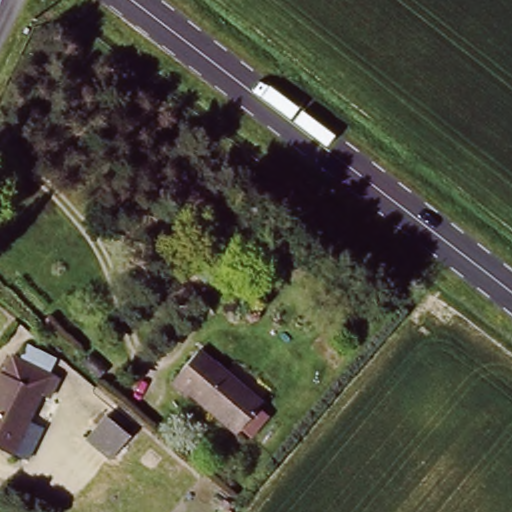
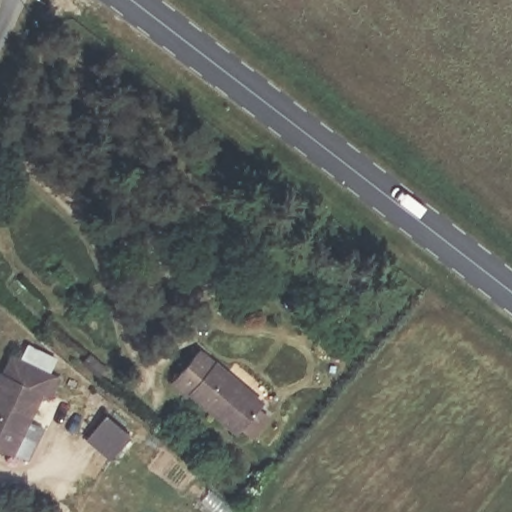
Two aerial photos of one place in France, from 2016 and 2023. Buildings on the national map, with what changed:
unchanged [(237,432),(190,392),(185,398),(167,383),(198,347),(263,401),(237,432)]
unchanged [(52,396),(47,392),(13,452),(0,445),(0,385),(9,369),(11,370),(20,353),(63,377),(52,396)]

